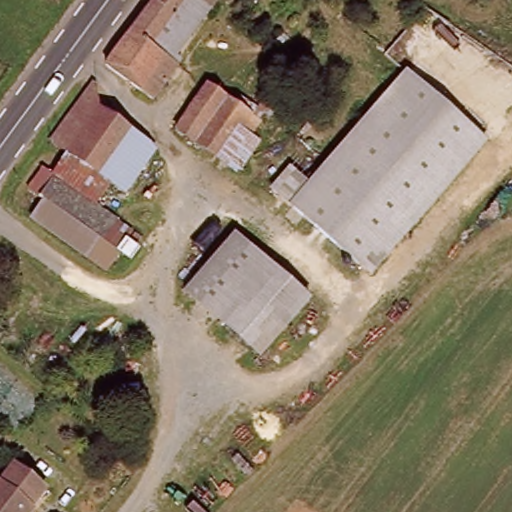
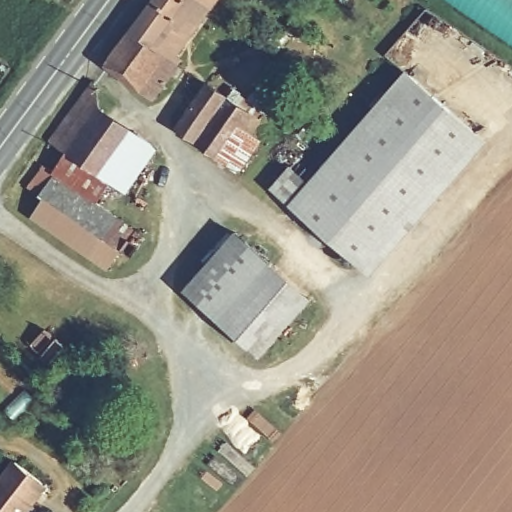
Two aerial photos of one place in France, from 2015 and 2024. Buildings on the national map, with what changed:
unchanged [(174,64),(178,69),(154,101),(108,69),(158,0),(196,0),(211,10),(174,64)]
unchanged [(196,0),(219,0),(211,10),(196,0)]
new [(446,0),(512,0),(512,45),(446,0)]
unchanged [(356,264),(287,202),(271,189),(288,170),(305,184),(324,164),(408,73),(412,77),(473,134),(461,148),(356,264)]
unchanged [(104,109),(70,156),(60,148),(53,144),(97,84),(104,109)]
unchanged [(261,121),(249,138),(256,141),(236,169),(176,128),(206,84),(261,121)]
unchanged [(70,156),(104,109),(161,151),(128,198),(116,190),(70,156)]
unchanged [(369,274),(361,268),(356,264),(461,148),(473,134),(481,141),(487,146),(477,158),(369,274)]
unchanged [(56,175),(70,156),(116,190),(103,209),(56,175)]
unchanged [(104,268),(88,257),(29,213),(56,175),(103,209),(117,219),(132,230),(104,268)]
unchanged [(311,305),(264,359),(189,290),(216,261),(238,237),(248,246),(311,305)]
unchanged [(43,489),(29,506),(34,509),(32,512),(0,512),(0,480),(2,482),(15,466),(43,489)]

